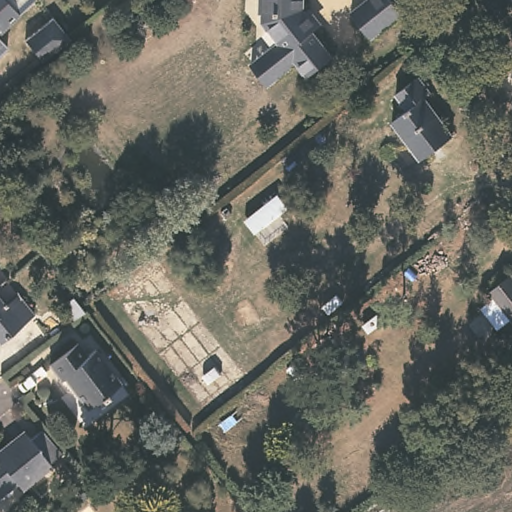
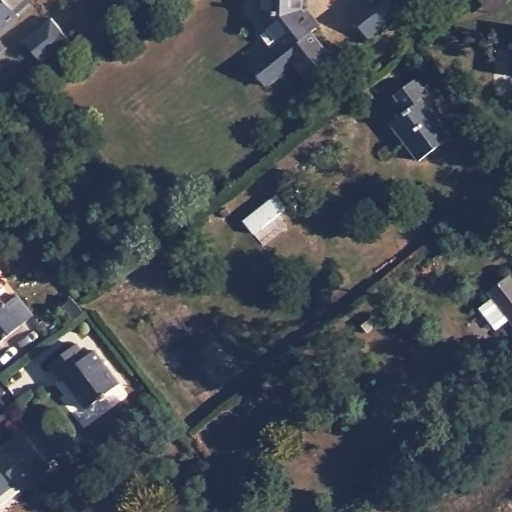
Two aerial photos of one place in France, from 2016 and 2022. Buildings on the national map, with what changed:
unchanged [(0,25),(0,0),(6,0),(15,10),(0,25)]
unchanged [(310,18),(330,42),(306,61),(295,49),(265,73),(249,52),(280,28),(261,5),(261,0),(305,0),(315,13),(310,18)]
unchanged [(369,34),(348,10),(361,0),(393,0),(400,9),(369,34)]
unchanged [(469,5),(476,0),(510,0),(483,23),(469,5)]
unchanged [(72,40),(45,61),(29,39),(54,18),(72,40)]
unchanged [(0,44),(0,38),(3,41),(0,44)]
unchanged [(426,94),(420,99),(448,136),(417,160),(388,122),(402,110),(392,94),(413,78),(426,94)]
unchanged [(242,245),(224,257),(211,238),(227,225),(242,245)]
unchanged [(512,277),(512,320),(486,287),(506,270),(512,277)]
unchanged [(13,292),(29,312),(0,335),(0,301),(0,302),(13,292)]
unchanged [(87,349),(96,342),(120,374),(106,385),(107,386),(102,390),(101,388),(87,399),(65,371),(61,374),(50,357),(77,336),(87,349)]
unchanged [(16,484),(0,497),(0,449),(9,441),(20,432),(25,438),(50,466),(21,489),(16,484)]

